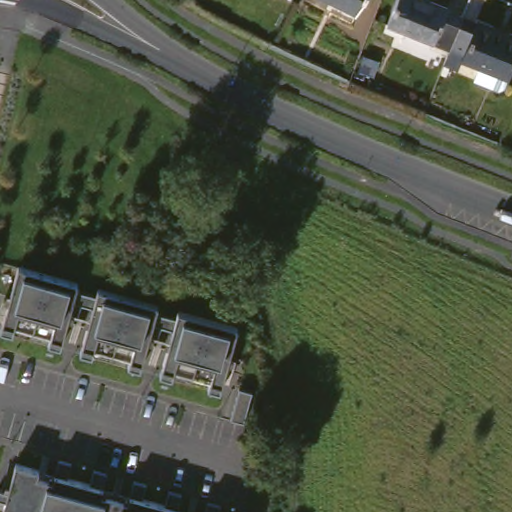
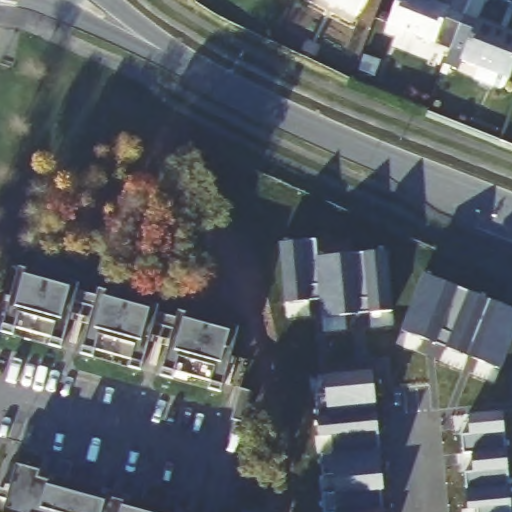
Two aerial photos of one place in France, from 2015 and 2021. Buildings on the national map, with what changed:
unchanged [(365,7),(352,0),(368,0),(365,7)]
unchanged [(460,2),(476,9),(463,40),(402,14),(408,0),(461,0),(460,2)]
unchanged [(511,80),(487,70),(492,57),(474,49),(467,66),(455,61),(463,40),(476,9),(490,15),(491,11),(512,19),(512,79),(511,80)]
new [(325,234),(325,250),(390,246),(395,307),(328,312),(325,297),(291,298),(288,236),(325,234)]
unchanged [(89,278),(86,286),(106,291),(108,283),(169,299),(166,307),(186,312),(187,304),(249,320),(231,386),(225,384),(220,382),(221,375),(185,366),(183,373),(156,366),(139,362),(140,354),(106,345),(104,352),(60,341),(61,333),(25,324),(23,331),(20,331),(11,328),(28,262),(89,278)]
new [(430,272),(494,298),(492,303),(512,311),(512,341),(498,376),(466,365),(469,357),(405,327),(426,271),(430,272)]
new [(396,512),(336,512),(336,490),(345,491),(343,475),(335,475),(334,455),(343,455),(343,435),(331,435),(330,414),(334,410),(335,393),(343,393),(341,376),(339,372),(391,372),(396,512)]
new [(475,512),(475,508),(469,508),(466,474),(472,473),(471,452),(465,452),(463,435),(470,435),(468,418),(500,413),(510,512),(475,512)]
unchanged [(50,468),(66,472),(72,451),(85,455),(80,470),(103,476),(107,461),(119,465),(114,486),(140,493),(146,472),(159,475),(155,490),(177,497),(181,482),(194,485),(188,507),(208,512),(52,512),(42,510),(42,512),(28,512),(4,506),(11,479),(21,482),(28,455),(52,462),(50,468)]
unchanged [(222,493),(234,496),(229,511),(234,512),(216,512),(221,492),(222,493)]
unchanged [(268,506),(267,512),(253,512),(256,502),(268,506)]

